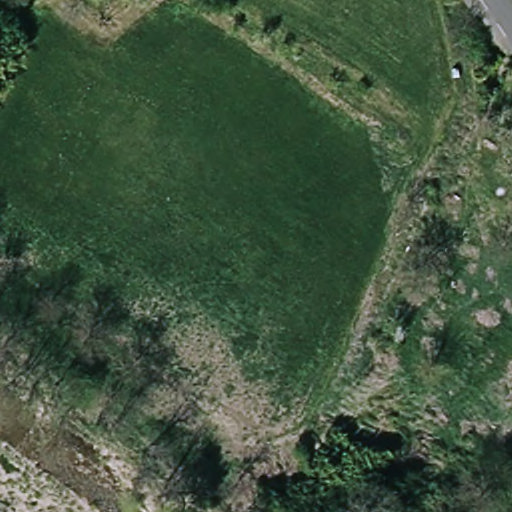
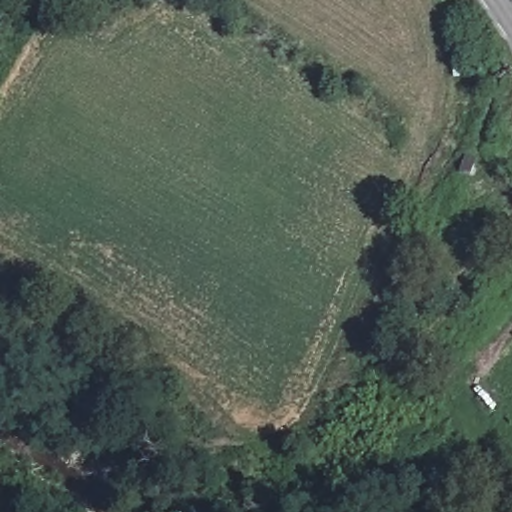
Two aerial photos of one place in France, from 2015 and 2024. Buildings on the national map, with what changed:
[]

